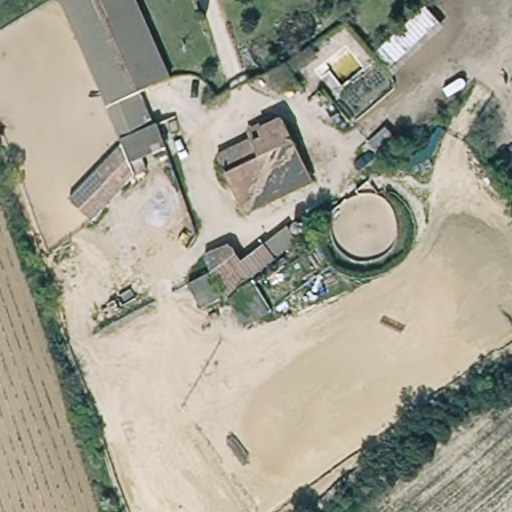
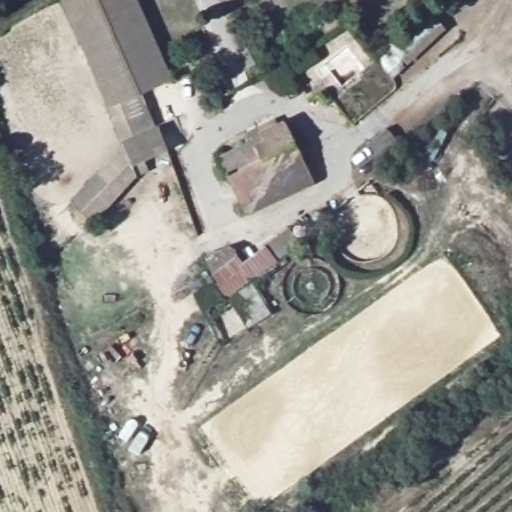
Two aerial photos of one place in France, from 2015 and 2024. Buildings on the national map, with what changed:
unchanged [(130,168),(63,0),(141,0),(175,83),(145,96),(157,126),(164,124),(172,151),(130,168)]
unchanged [(395,76),(377,52),(424,10),(444,29),(395,76)]
unchanged [(246,142),(255,137),(258,144),(275,136),(288,129),(313,178),(252,211),(223,155),(246,142)]
unchanged [(229,245),(243,263),(267,244),(282,263),(226,305),(205,259),(229,245)]

